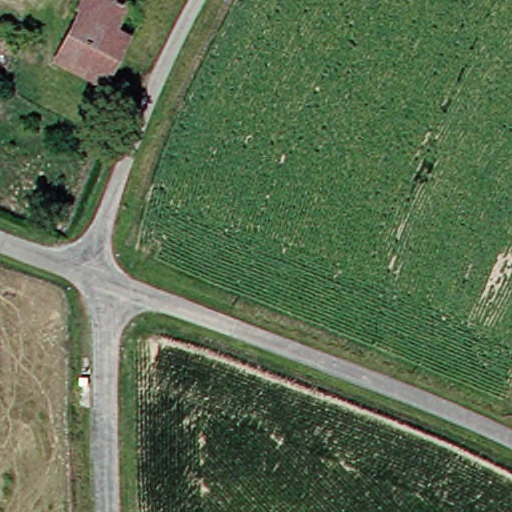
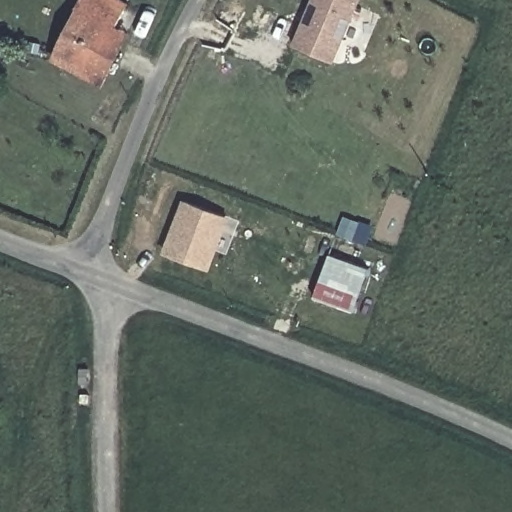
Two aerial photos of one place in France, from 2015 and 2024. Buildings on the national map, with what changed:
unchanged [(80,62),(53,49),(72,12),(67,10),(72,0),(116,0),(121,2),(107,30),(99,26),(80,62)]
new [(359,0),(330,62),(290,44),(310,0),(359,0)]
unchanged [(46,62),(53,49),(80,62),(99,26),(107,30),(119,37),(91,85),(46,62)]
new [(184,204),(226,221),(206,271),(164,255),(184,204)]
new [(314,297),(330,254),(368,268),(351,312),(314,297)]

